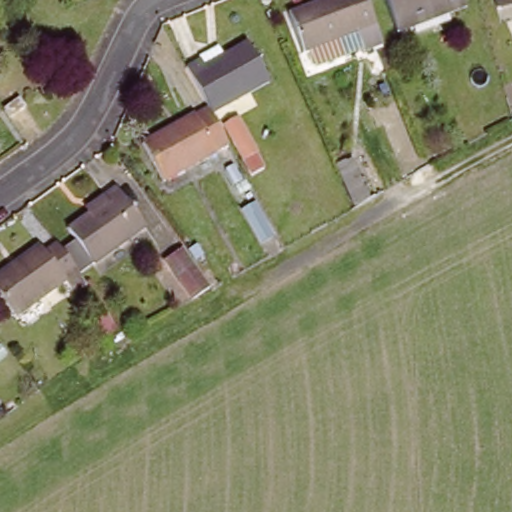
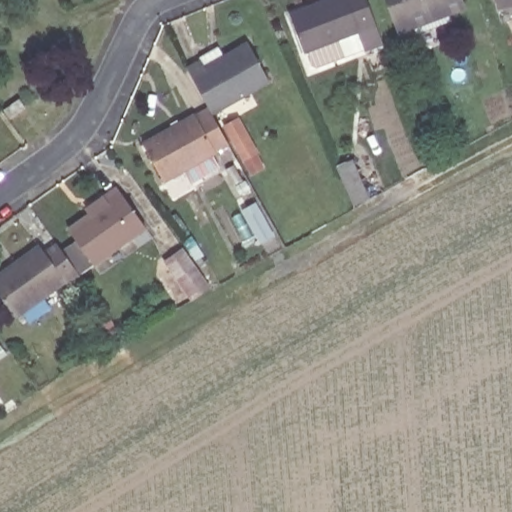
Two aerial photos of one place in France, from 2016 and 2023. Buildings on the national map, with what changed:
unchanged [(304,54),(290,17),(333,0),(365,0),(376,26),(304,54)]
unchanged [(386,0),(464,0),(465,4),(446,11),(414,24),(398,30),(386,0)]
unchanged [(512,0),(512,4),(499,7),(497,0),(512,0)]
unchanged [(199,64),(198,61),(217,50),(223,60),(248,46),(269,84),(212,116),(208,110),(186,70),(199,64)]
unchanged [(0,105),(0,101),(13,92),(19,100),(4,110),(0,105)]
unchanged [(212,116),(230,147),(163,184),(142,148),(208,110),(212,116)]
unchanged [(258,156),(245,164),(224,128),(237,120),(258,156)]
unchanged [(364,190),(350,196),(334,159),(347,152),(364,190)]
unchanged [(238,174),(230,178),(222,163),(230,159),(238,174)]
unchanged [(145,227),(94,264),(70,229),(92,214),(87,208),(104,196),(117,187),(145,227)]
unchanged [(208,282),(191,292),(162,253),(178,241),(208,282)]
unchanged [(87,288),(75,296),(66,284),(17,320),(0,297),(0,278),(40,249),(46,257),(57,248),(87,288)]

